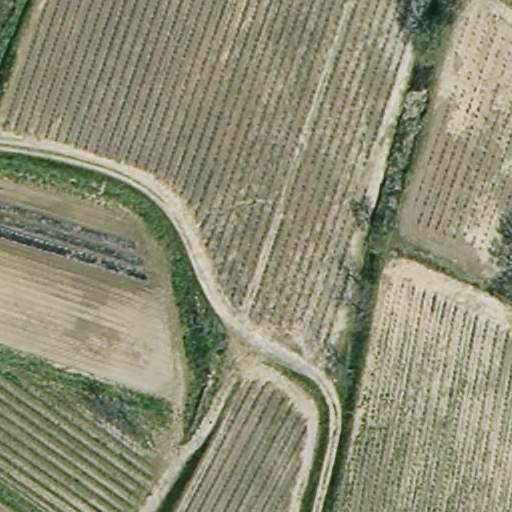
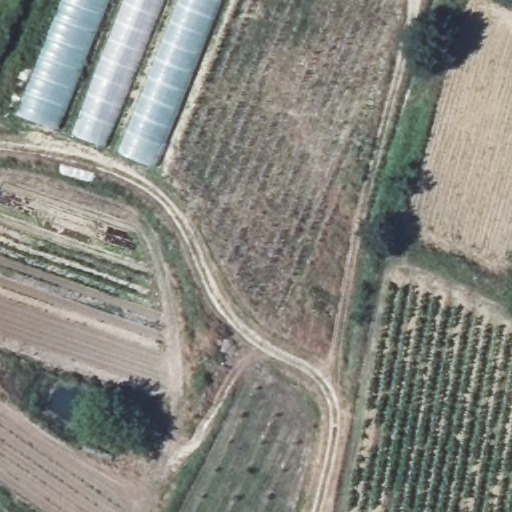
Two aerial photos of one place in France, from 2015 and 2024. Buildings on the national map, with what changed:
new [(62,0),(106,0),(55,128),(17,114),(62,0)]
new [(125,0),(162,0),(104,144),(73,131),(125,0)]
new [(118,151),(178,0),(219,0),(152,165),(118,151)]

